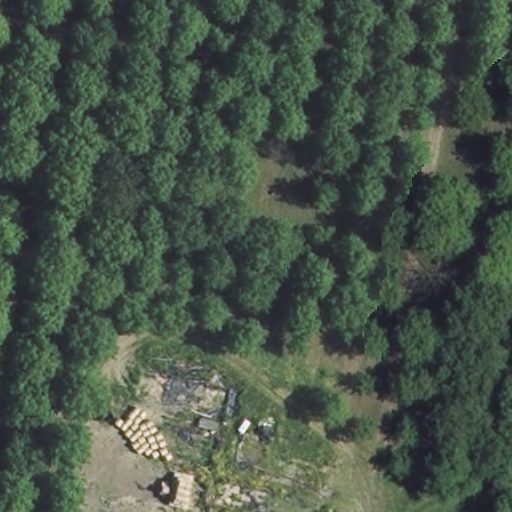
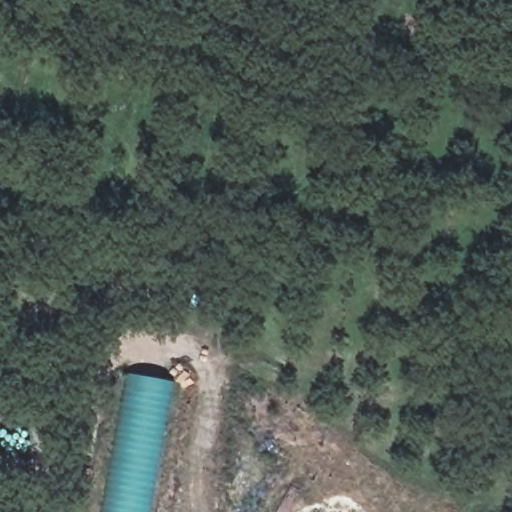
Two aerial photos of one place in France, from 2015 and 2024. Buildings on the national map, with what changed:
new [(120,372),(169,380),(145,512),(94,512),(120,372)]

